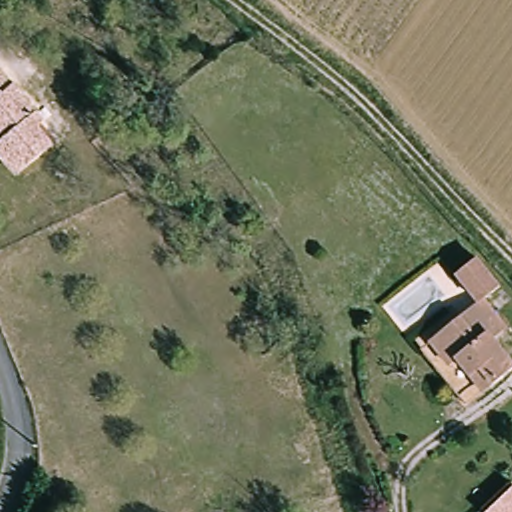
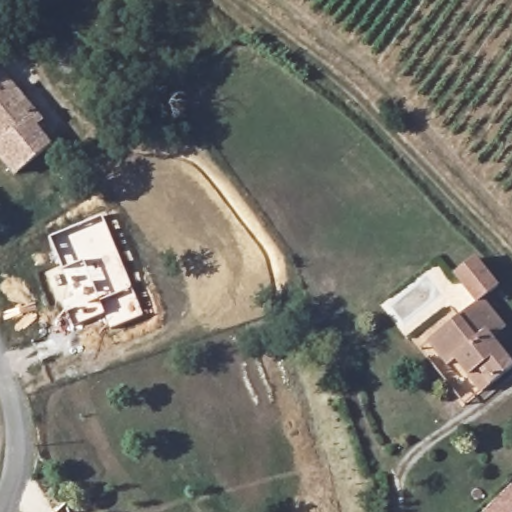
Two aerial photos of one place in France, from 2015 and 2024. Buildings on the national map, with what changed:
unchanged [(43,115),(35,121),(52,139),(18,172),(0,153),(0,141),(2,139),(0,136),(0,74),(35,108),(43,115)]
new [(144,316),(110,330),(103,316),(74,327),(64,303),(74,299),(48,237),(103,216),(144,316)]
unchanged [(454,364),(434,339),(449,327),(483,298),(452,254),(469,241),(503,284),(497,289),(512,307),(512,318),(505,324),(512,332),(512,367),(491,383),(479,393),(454,364)]

